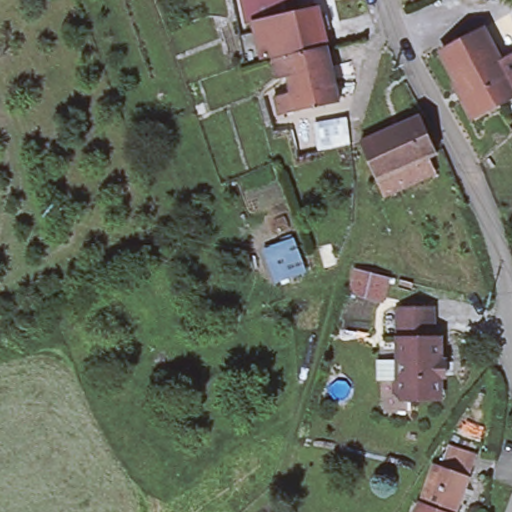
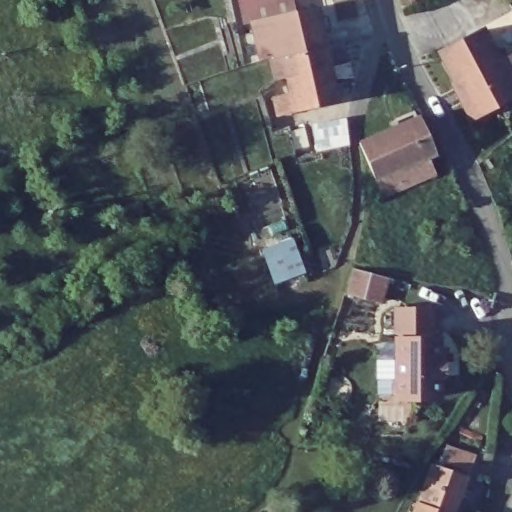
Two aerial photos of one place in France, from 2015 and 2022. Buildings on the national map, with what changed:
unchanged [(297,11),(255,21),(246,24),(241,0),(295,0),(297,11)]
unchanged [(412,2),(412,0),(416,0),(412,2)]
unchanged [(297,11),(317,7),(320,6),(322,17),(328,16),(330,28),(325,30),(328,46),(275,57),(265,59),(255,21),(297,11)]
unchanged [(441,52),(484,31),(501,66),(512,60),(512,97),(479,114),(472,117),(455,85),(458,84),(441,52)]
unchanged [(321,128),(317,107),(279,117),(274,97),(292,93),(289,77),(280,79),(275,57),(328,46),(340,102),(345,122),(321,128)]
unchanged [(357,142),(417,117),(432,154),(424,158),(430,173),(378,197),(358,149),(357,142)]
unchanged [(295,239),(307,276),(273,283),(264,251),(295,239)]
unchanged [(332,244),(337,264),(325,268),(320,247),(332,244)]
unchanged [(349,293),(355,268),(389,277),(382,302),(349,293)]
unchanged [(430,308),(430,338),(394,338),(393,308),(430,308)]
unchanged [(437,338),(437,359),(442,359),(442,375),(437,375),(437,393),(412,394),(408,401),(397,400),(390,393),(390,382),(394,378),(394,338),(430,338),(437,338)]
unchanged [(471,457),(464,476),(451,512),(412,512),(430,464),(437,467),(444,448),(471,457)]

